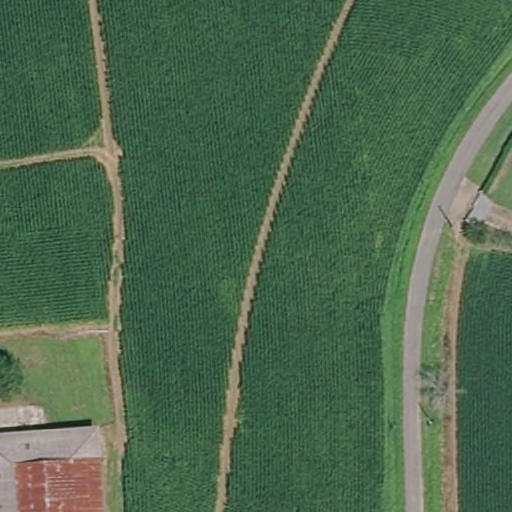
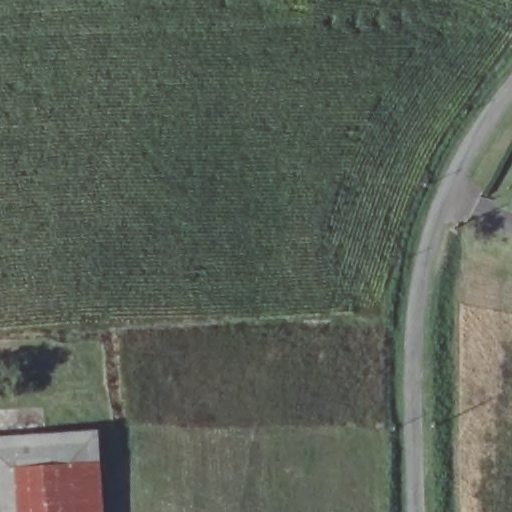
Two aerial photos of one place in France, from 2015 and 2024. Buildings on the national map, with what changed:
unchanged [(96,438),(97,443),(100,512),(0,512),(0,439),(96,438)]

